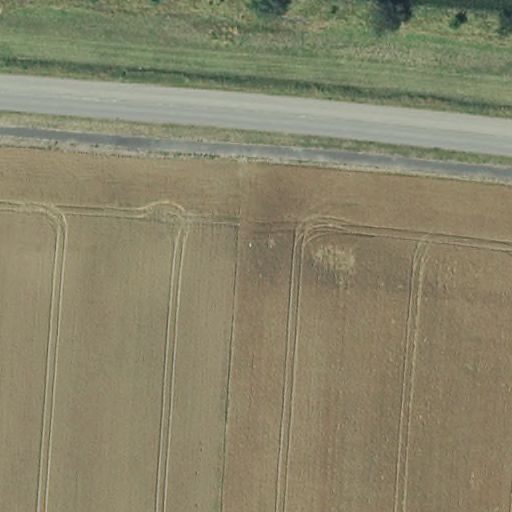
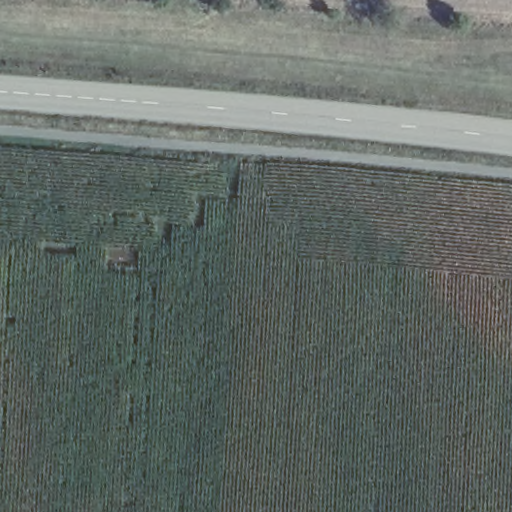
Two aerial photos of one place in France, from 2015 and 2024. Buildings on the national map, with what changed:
[]

